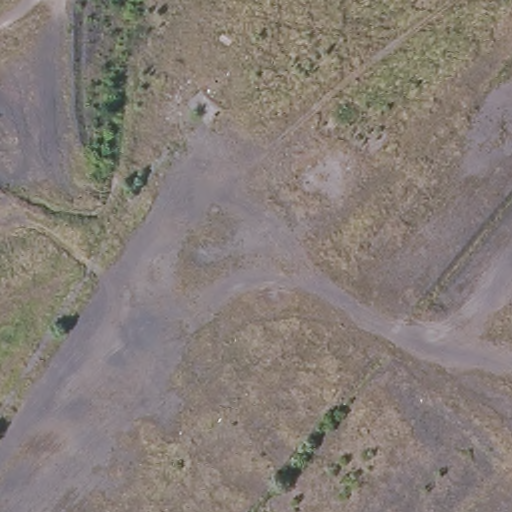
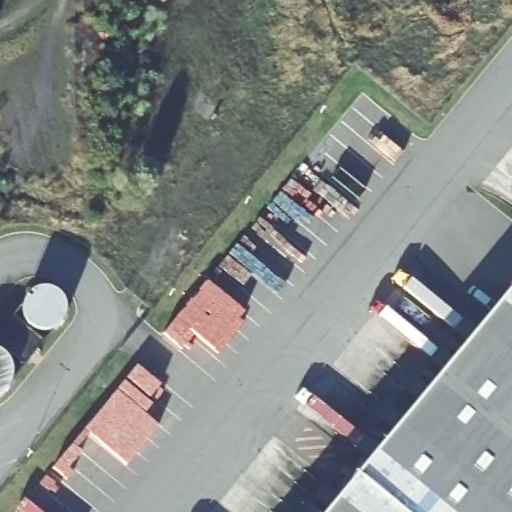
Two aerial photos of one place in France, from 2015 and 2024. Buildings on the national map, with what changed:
new [(512,275),(512,512),(316,512),(512,275)]
new [(22,304),(26,296),(30,292),(38,288),(47,288),(55,291),(61,297),(65,305),(65,311),(64,319),(60,324),(54,330),(12,380),(10,380),(7,385),(4,390),(0,393),(0,330),(21,303),(22,304)]

